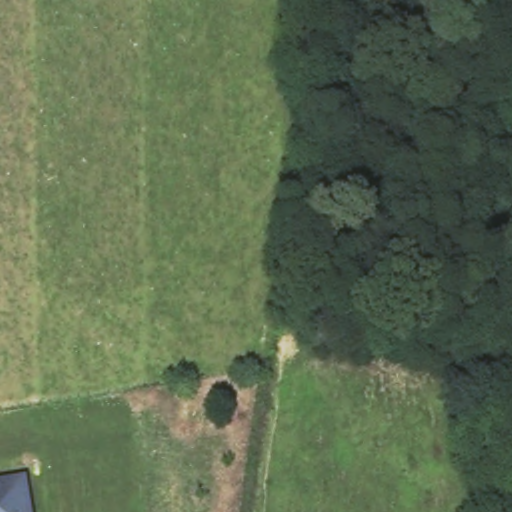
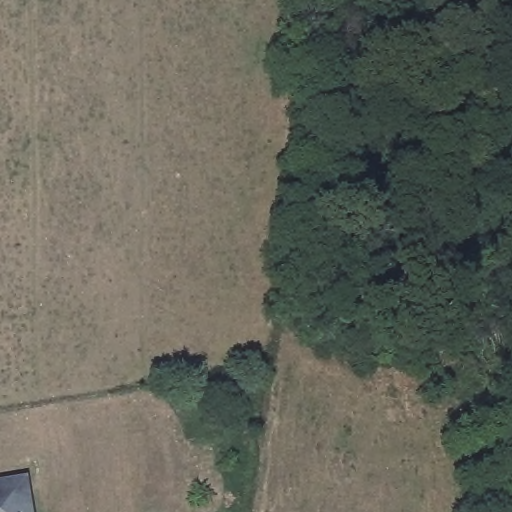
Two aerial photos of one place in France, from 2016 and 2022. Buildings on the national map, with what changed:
unchanged [(38,512),(0,512),(0,485),(34,480),(38,512)]

